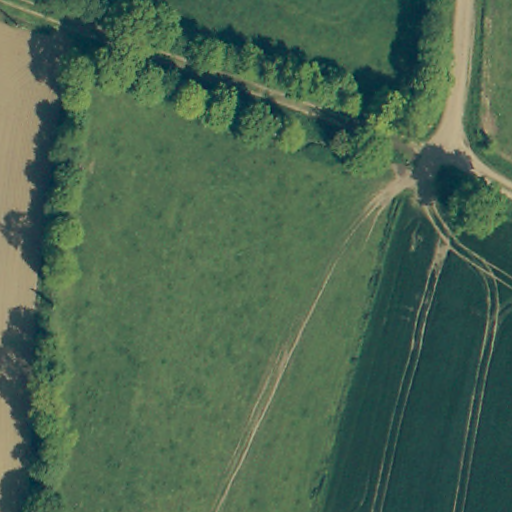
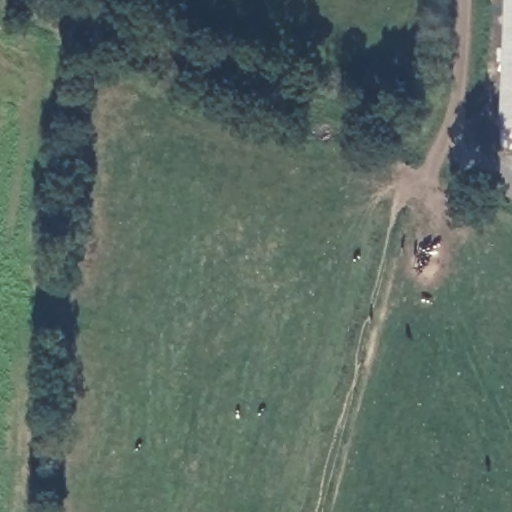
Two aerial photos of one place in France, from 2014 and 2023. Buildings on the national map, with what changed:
new [(512,130),(497,129),(503,0),(512,0),(512,130)]

